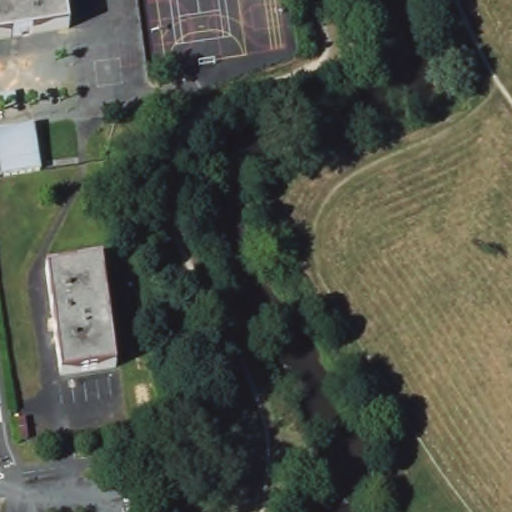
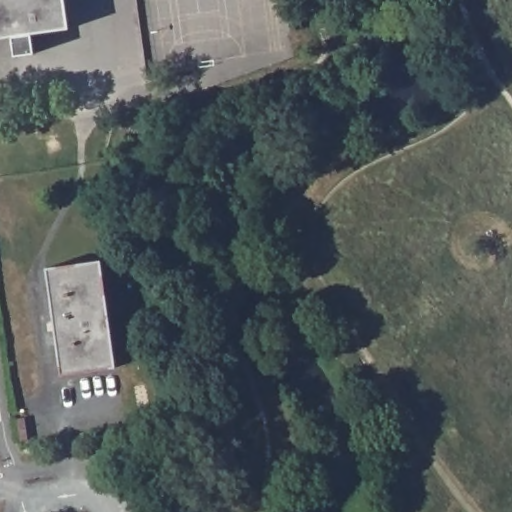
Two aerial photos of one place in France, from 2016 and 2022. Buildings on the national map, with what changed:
unchanged [(64,28),(0,36),(0,0),(60,0),(64,28)]
demolished [(39,124),(45,169),(5,175),(0,137),(0,130),(39,124)]
unchanged [(99,260),(114,366),(60,374),(44,268),(99,260)]
unchanged [(21,415),(24,435),(16,436),(14,415),(21,415)]

